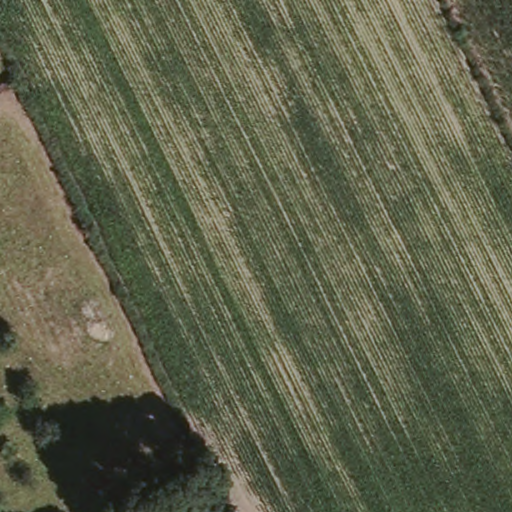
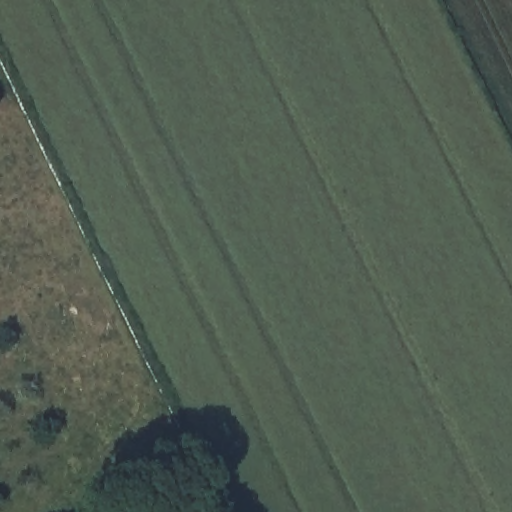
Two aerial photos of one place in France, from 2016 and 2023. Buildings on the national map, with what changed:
[]

